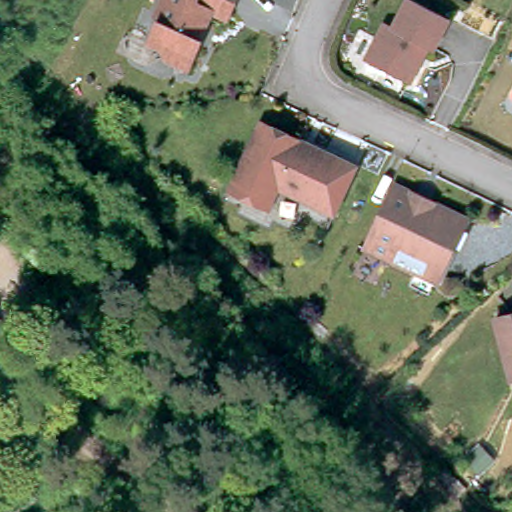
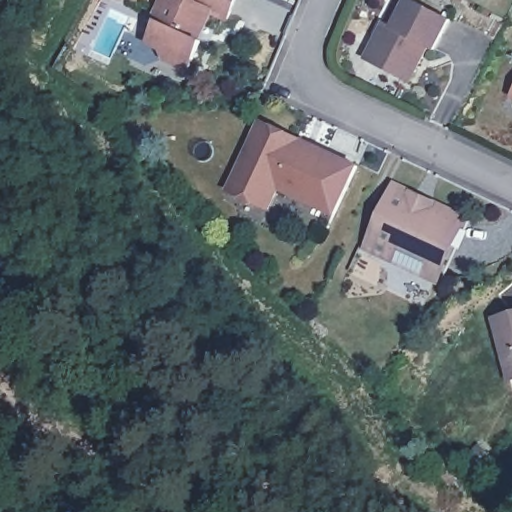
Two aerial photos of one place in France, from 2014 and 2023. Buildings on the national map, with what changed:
unchanged [(148,39),(159,20),(156,12),(162,0),(234,0),(227,15),(211,8),(201,28),(196,25),(191,34),(201,38),(188,65),(166,56),(162,46),(148,39)]
unchanged [(393,24),(406,0),(416,0),(448,16),(432,46),(427,44),(409,78),(365,55),(384,20),(393,24)]
unchanged [(234,179),(260,122),(296,140),(299,136),(356,164),(334,211),(279,185),(268,207),(248,197),(229,188),(234,179)]
unchanged [(424,270),(368,243),(393,189),(398,180),(441,200),(466,212),(442,263),(436,276),(424,270)]
unchanged [(493,316),(512,311),(512,375),(508,376),(493,316)]

